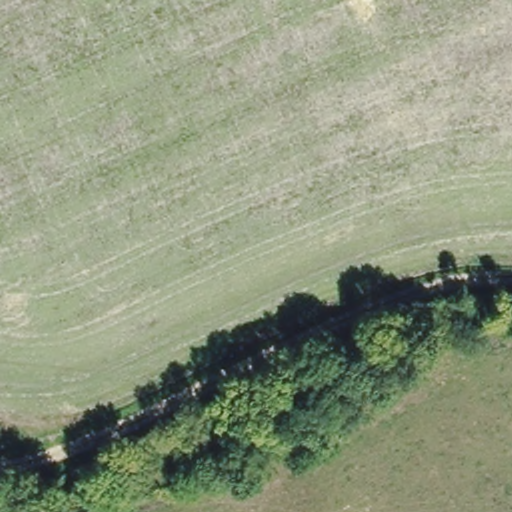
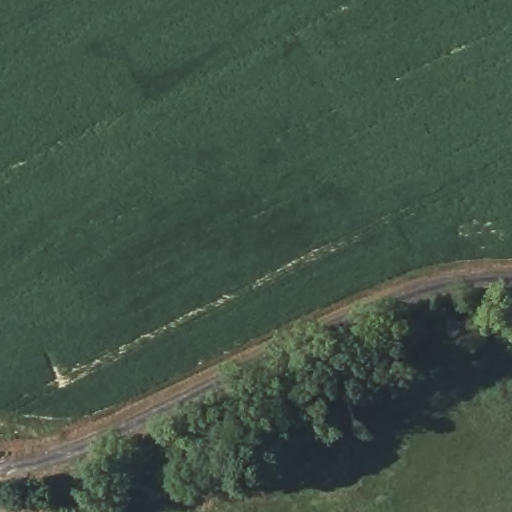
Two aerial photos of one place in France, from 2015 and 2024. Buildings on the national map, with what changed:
[]

